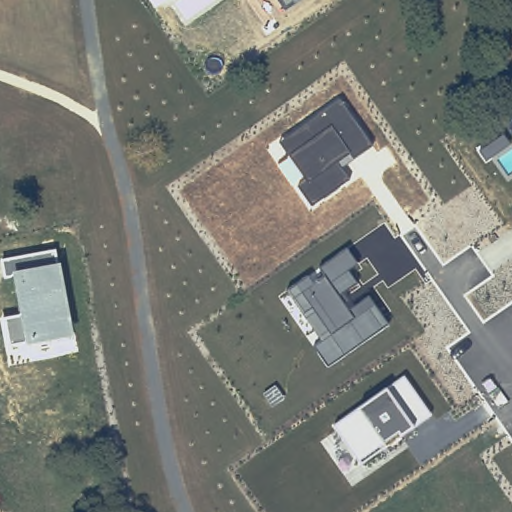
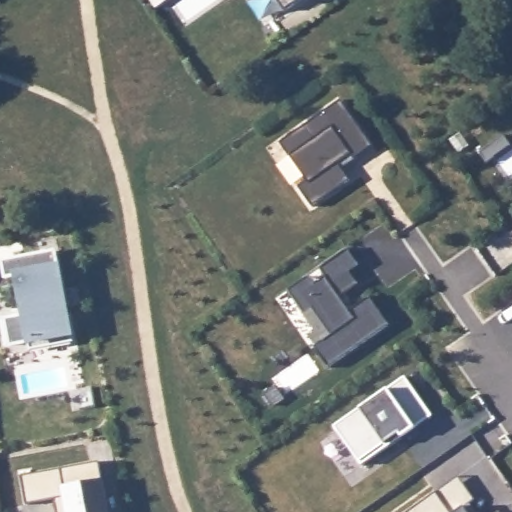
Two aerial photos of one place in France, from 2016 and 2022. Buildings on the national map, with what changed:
unchanged [(279,0),(298,0),(293,3),(285,9),(279,0)]
unchanged [(299,186),(308,181),(289,156),(280,143),(340,100),(373,145),(355,157),(340,167),(349,180),(312,205),(299,186)]
unchanged [(314,346),(321,341),(287,290),(308,275),(314,283),(324,276),(318,268),(348,248),(358,262),(347,270),(357,282),(338,295),(348,310),(368,296),(388,323),(328,366),(314,346)]
unchanged [(0,325),(0,318),(20,313),(13,276),(3,278),(0,260),(54,250),(60,261),(72,335),(25,344),(24,341),(5,345),(0,325)]
unchanged [(333,425),(358,407),(386,387),(404,375),(430,415),(413,427),(402,436),(386,445),(361,463),(333,425)]
new [(97,463),(106,512),(56,512),(54,498),(25,503),(20,476),(97,463)]

